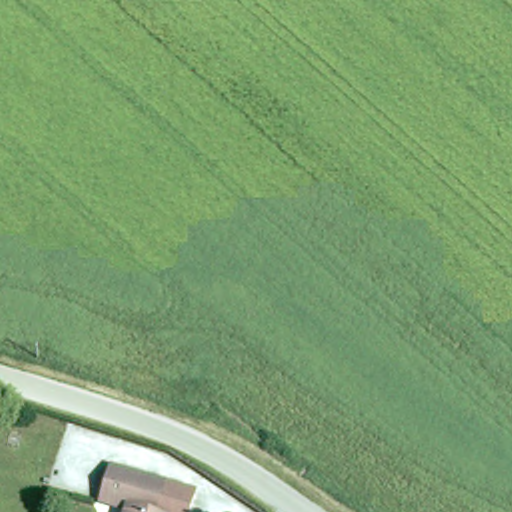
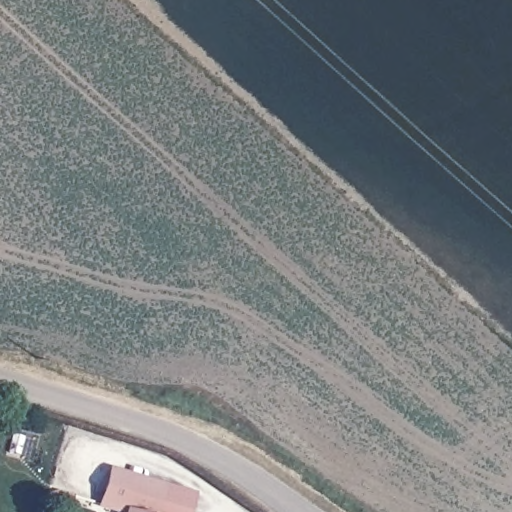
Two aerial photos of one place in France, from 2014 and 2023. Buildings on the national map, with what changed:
unchanged [(98,505),(108,470),(191,494),(186,512),(124,512),(98,505)]

